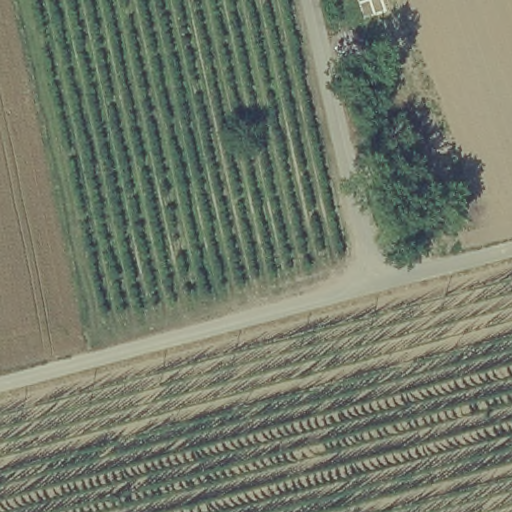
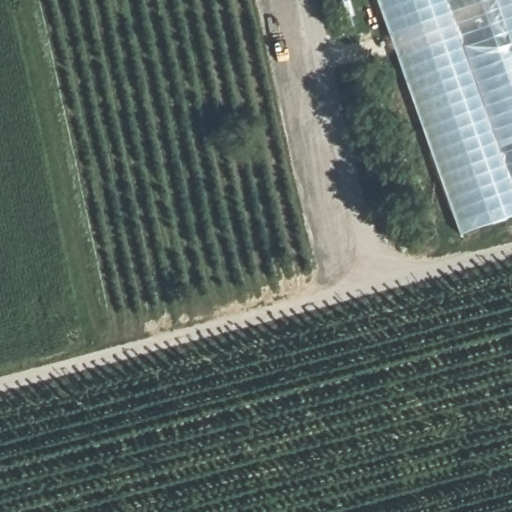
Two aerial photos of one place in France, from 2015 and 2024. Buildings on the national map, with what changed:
new [(512,0),(512,215),(461,234),(378,0),(512,0)]

